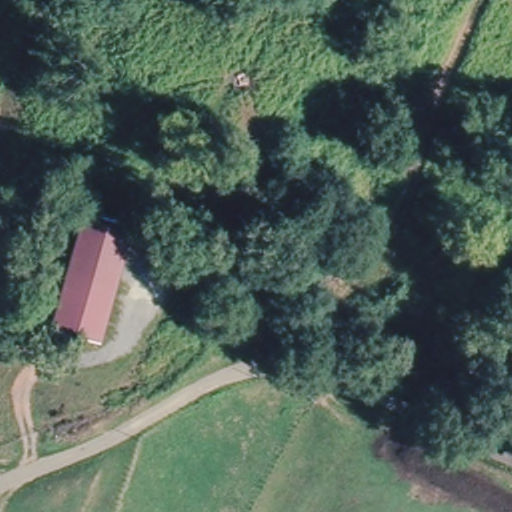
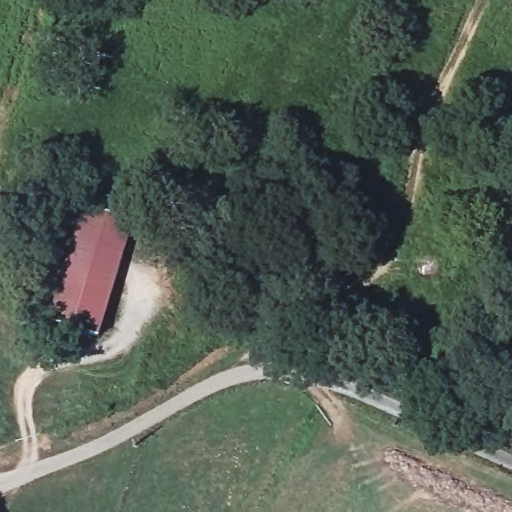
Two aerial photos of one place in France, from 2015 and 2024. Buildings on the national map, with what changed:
unchanged [(134,231),(94,340),(46,321),(86,213),(134,231)]

